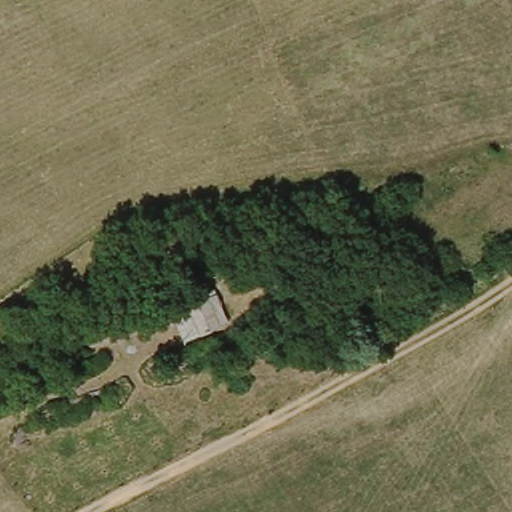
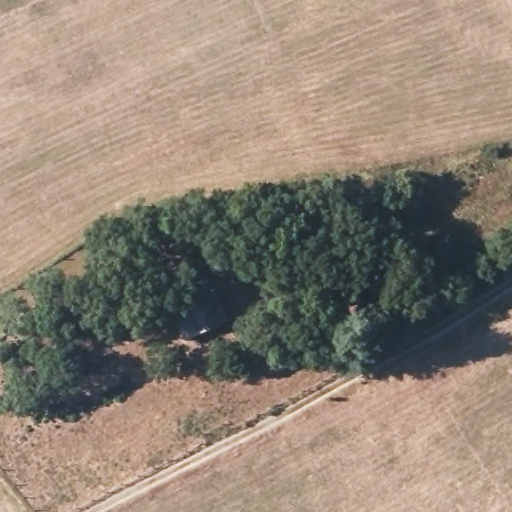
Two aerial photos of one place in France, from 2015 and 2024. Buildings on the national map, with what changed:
unchanged [(173,314),(213,297),(224,327),(185,341),(173,314)]

